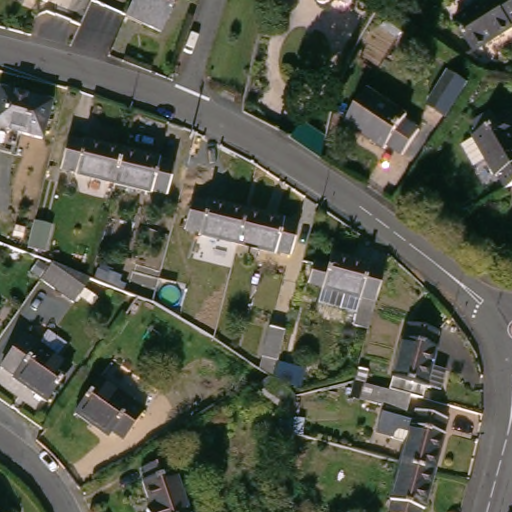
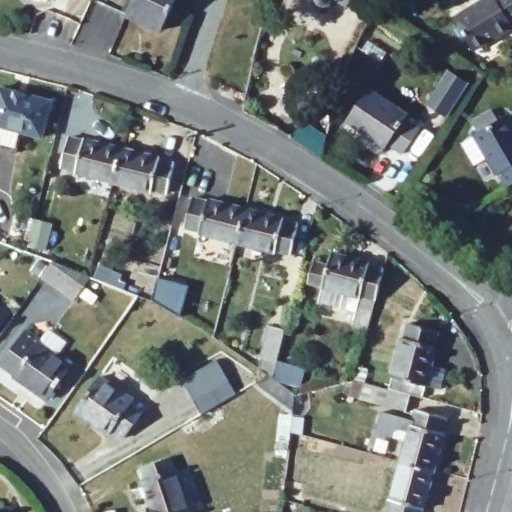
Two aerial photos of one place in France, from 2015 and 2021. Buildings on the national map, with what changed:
unchanged [(168,32),(134,15),(141,0),(182,0),(168,32)]
unchanged [(347,1),(342,4),(337,3),(334,0),(347,0),(347,1)]
unchanged [(361,4),(355,0),(363,0),(361,4)]
unchanged [(512,31),(488,45),(467,11),(485,0),(512,0),(512,31)]
unchanged [(429,97),(450,60),(480,76),(458,113),(429,97)]
unchanged [(355,119),(377,86),(418,113),(415,118),(429,128),(412,153),(396,143),(394,147),(355,119)]
unchanged [(8,88),(60,102),(51,139),(0,125),(0,116),(8,88)]
unchanged [(494,151),(481,158),(469,137),(482,129),(512,113),(512,176),(508,169),(505,171),(494,151)]
unchanged [(309,130),(332,145),(328,159),(301,142),(309,130)]
unchanged [(83,170),(84,168),(69,164),(77,133),(93,137),(93,135),(131,145),(122,180),(83,170)]
unchanged [(168,154),(168,156),(183,160),(175,191),(160,187),(160,189),(122,180),(131,145),(168,154)]
unchanged [(211,231),(212,229),(198,225),(205,194),(221,198),(221,196),(259,206),(250,241),(211,231)]
unchanged [(297,216),(296,219),(310,221),(302,253),(288,249),(288,251),(250,241),(259,206),(297,216)]
unchanged [(58,243),(81,252),(77,264),(54,256),(58,243)]
unchanged [(331,285),(331,283),(317,280),(322,259),(338,264),(341,251),(378,262),(378,264),(393,268),(378,326),(363,323),(366,310),(327,300),(331,285)]
unchanged [(60,262),(98,277),(100,278),(82,303),(48,279),(60,262)]
unchanged [(0,323),(0,309),(7,314),(0,323)]
unchanged [(370,394),(375,378),(377,379),(400,385),(413,335),(416,336),(420,320),(450,330),(446,344),(449,345),(444,363),(456,367),(450,388),(437,384),(434,395),(432,394),(422,391),(418,407),(370,394)]
unchanged [(54,337),(61,327),(78,338),(68,351),(84,362),(60,396),(25,372),(27,370),(13,361),(38,326),(54,337)]
unchanged [(279,329),(293,333),(285,363),(271,359),(279,329)]
new [(231,384),(195,404),(182,378),(218,359),(231,384)]
unchanged [(87,408),(112,374),(157,406),(138,436),(123,426),(119,431),(87,408)]
unchanged [(302,418),(262,389),(278,379),(281,381),(305,398),(302,418)]
unchanged [(414,440),(401,436),(402,433),(384,428),(390,413),(419,422),(423,423),(426,409),(456,417),(452,432),(455,433),(446,470),(409,460),(414,440)]
unchanged [(154,481),(151,469),(180,460),(197,512),(154,512),(154,511),(159,509),(151,482),(154,481)]
unchanged [(431,508),(430,512),(398,512),(402,498),(399,497),(409,460),(446,470),(435,510),(431,508)]

